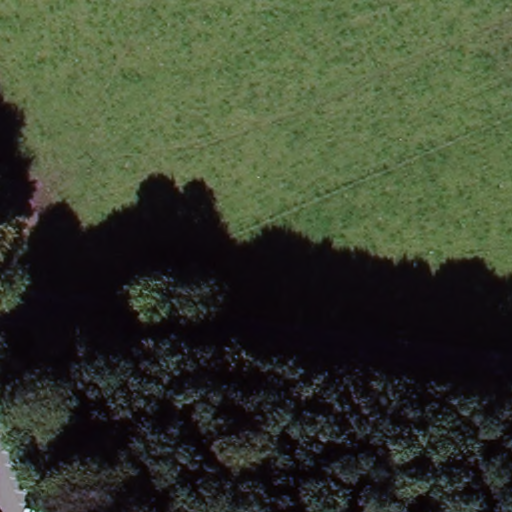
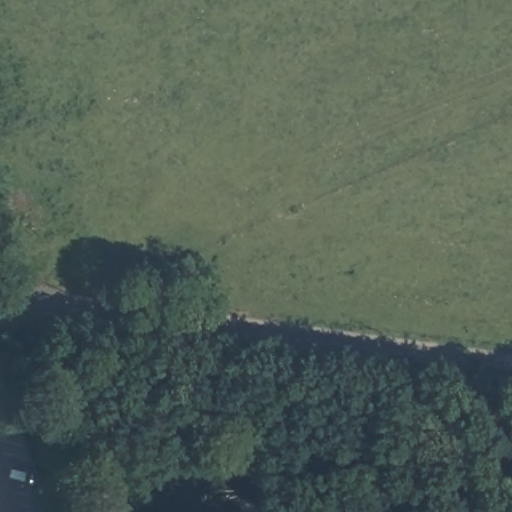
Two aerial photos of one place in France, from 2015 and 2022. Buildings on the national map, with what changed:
unchanged [(6,371),(0,373),(0,359),(2,358),(6,371)]

